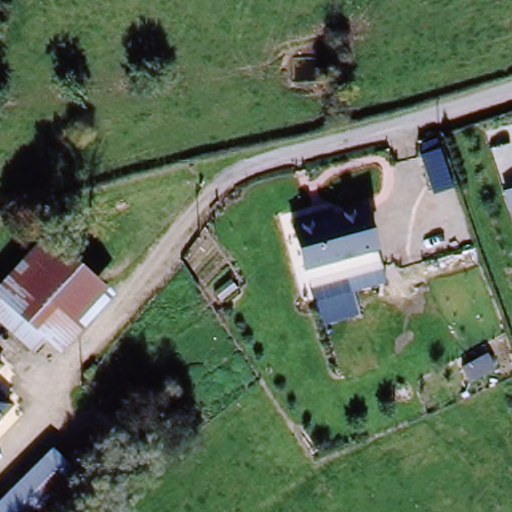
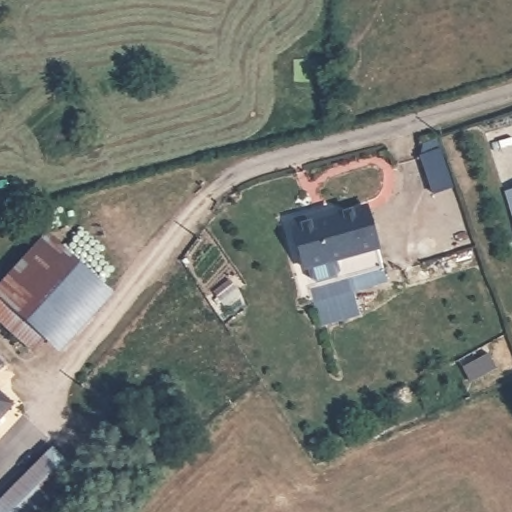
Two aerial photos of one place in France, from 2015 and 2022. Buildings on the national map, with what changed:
unchanged [(454,186),(430,194),(417,157),(423,155),(419,143),(437,138),(454,186)]
unchanged [(377,251),(305,273),(285,206),(310,198),(324,194),(327,200),(359,191),(377,251)]
unchanged [(506,193),(512,191),(512,212),(506,193)]
unchanged [(114,295),(62,354),(44,338),(34,353),(0,323),(0,281),(46,231),(114,295)]
unchanged [(0,372),(0,366),(3,368),(0,372)]
unchanged [(0,424),(0,395),(15,409),(0,424)]
unchanged [(77,474),(39,512),(0,512),(0,507),(55,452),(77,474)]
unchanged [(87,484),(58,512),(39,512),(77,474),(87,484)]

